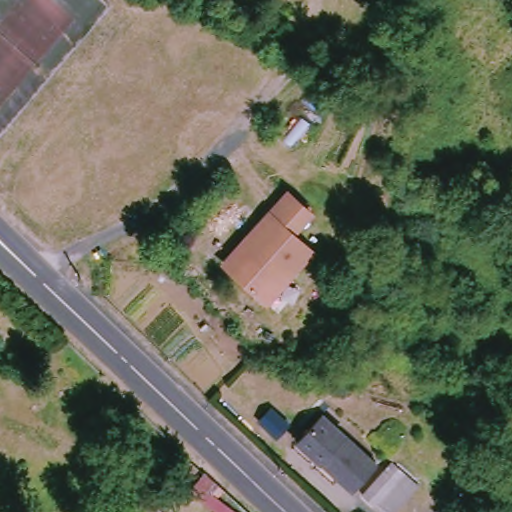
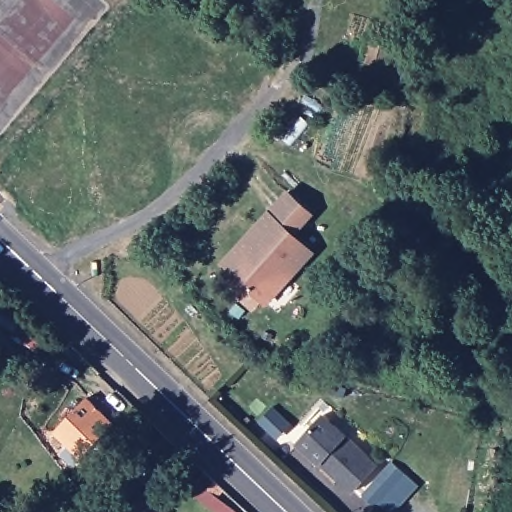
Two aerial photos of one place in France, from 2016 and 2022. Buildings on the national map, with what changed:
unchanged [(302,216),(286,236),(305,251),(260,304),(229,276),(217,266),(260,217),(280,195),(302,216)]
new [(115,428),(82,461),(54,433),(89,399),(115,428)]
unchanged [(352,491),(322,463),(322,465),(300,445),(327,415),(349,436),(347,437),(377,464),(352,491)]
unchanged [(380,511),(369,500),(400,467),(410,478),(380,511)]
unchanged [(133,512),(142,498),(161,512),(133,512)]

